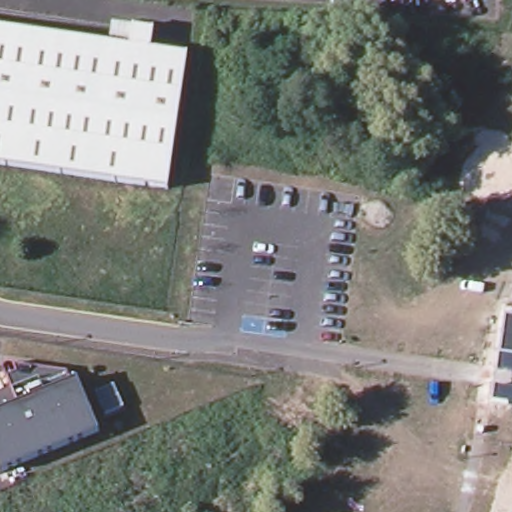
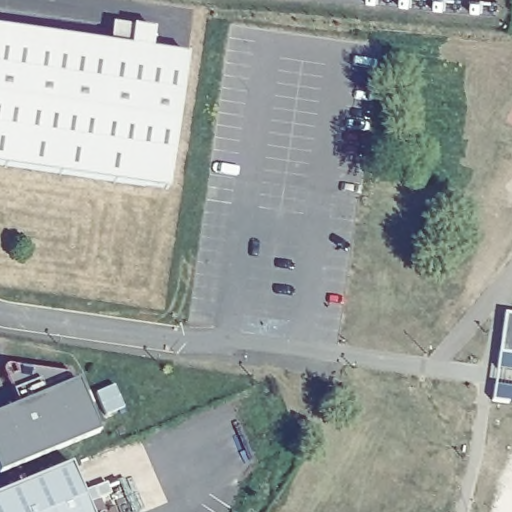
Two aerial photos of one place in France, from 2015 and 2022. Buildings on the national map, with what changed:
unchanged [(166,192),(0,167),(0,30),(105,46),(108,27),(130,30),(150,33),(147,53),(185,58),(166,192)]
unchanged [(512,372),(496,371),(504,313),(512,314),(512,372)]
unchanged [(17,404),(13,395),(3,367),(67,374),(76,380),(99,432),(0,473),(0,412),(17,404)]
unchanged [(493,385),(512,387),(512,406),(492,403),(493,385)]
new [(97,512),(0,512),(0,491),(75,460),(97,512)]

